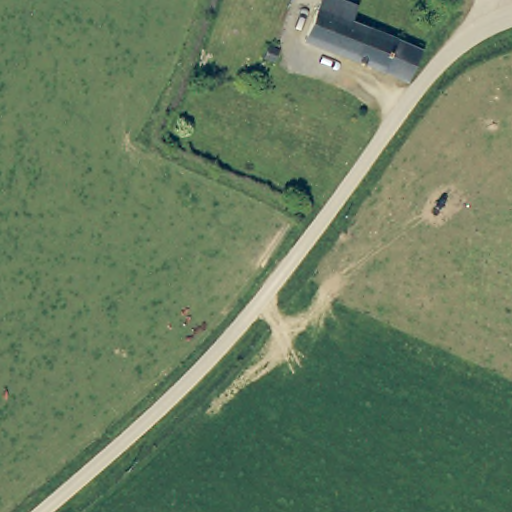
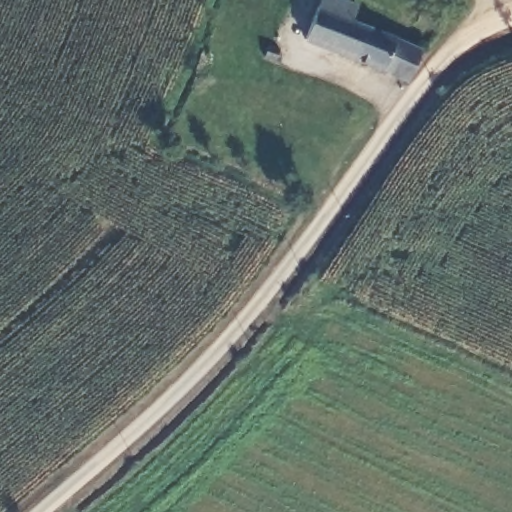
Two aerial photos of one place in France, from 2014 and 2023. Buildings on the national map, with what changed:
unchanged [(308,35),(323,0),(356,0),(365,3),(360,20),(375,27),(397,37),(421,48),(408,77),(402,75),(385,67),(308,35)]

